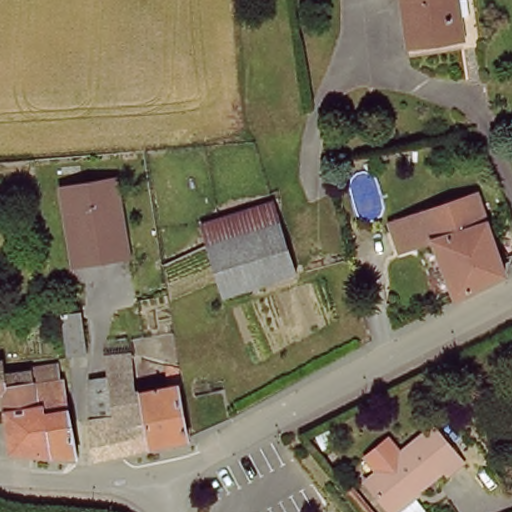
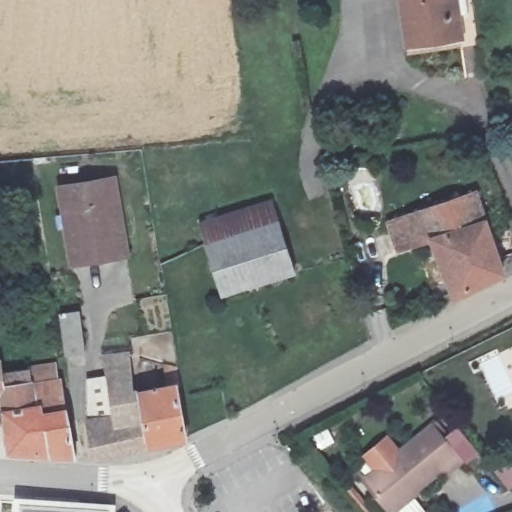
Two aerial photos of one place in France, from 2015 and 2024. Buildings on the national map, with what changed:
unchanged [(464,34),(422,46),(409,0),(454,0),(464,34)]
unchanged [(119,171),(128,257),(68,267),(55,184),(119,171)]
unchanged [(451,299),(450,299),(428,241),(411,241),(396,246),(390,223),(472,195),(500,268),(502,275),(451,299)]
unchanged [(220,299),(205,247),(197,224),(262,204),(269,200),(294,274),(256,287),(220,299)]
unchanged [(61,318),(84,315),(89,343),(90,355),(68,359),(66,345),(61,318)]
unchanged [(89,422),(114,417),(109,393),(103,359),(128,356),(135,394),(167,389),(163,368),(173,367),(186,439),(163,445),(96,459),(95,460),(94,459),(89,422)]
unchanged [(11,457),(7,411),(0,412),(0,372),(3,381),(35,378),(34,374),(54,371),(58,389),(60,388),(76,463),(11,457)]
unchanged [(427,438),(452,468),(402,509),(378,480),(427,438)]
new [(118,506),(123,512),(15,512),(16,498),(118,506)]

